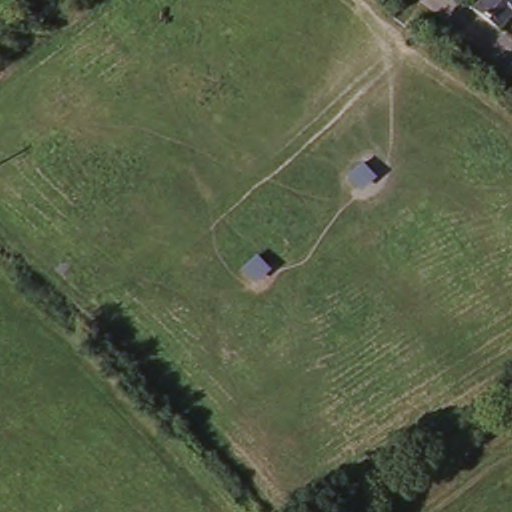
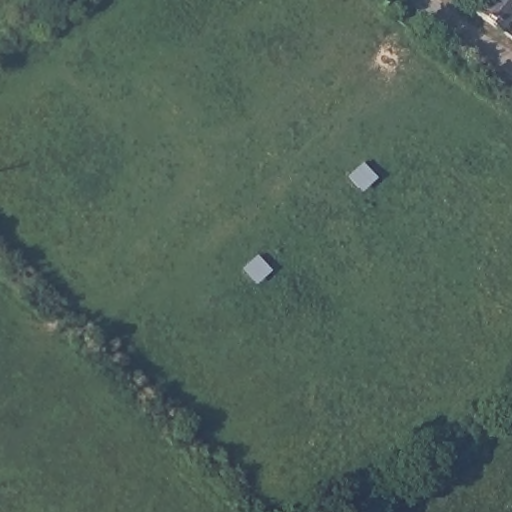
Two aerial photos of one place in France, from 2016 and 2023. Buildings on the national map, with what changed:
unchanged [(195,0),(193,3),(190,0),(195,0)]
unchanged [(512,0),(512,23),(499,39),(473,19),(489,0),(512,0)]

